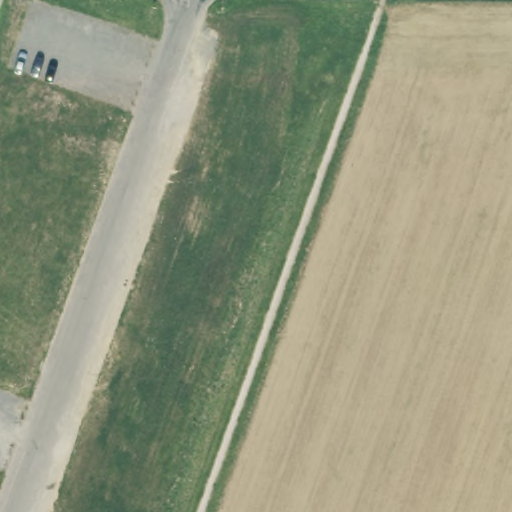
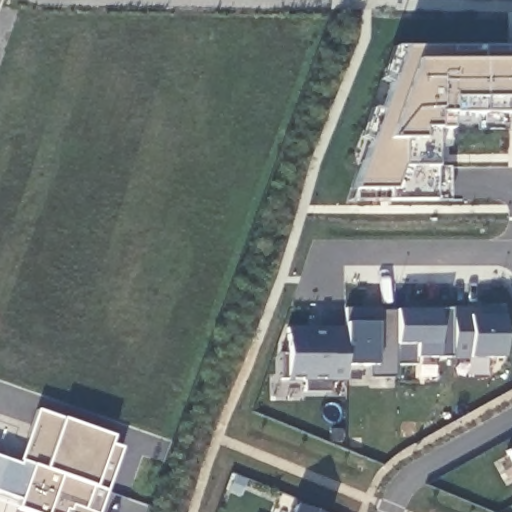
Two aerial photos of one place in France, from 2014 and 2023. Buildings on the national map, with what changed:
new [(450,114),(449,130),(435,129),(434,168),(435,199),(348,199),(351,191),(401,48),(512,48),(512,114),(450,114)]
new [(505,315),(502,360),(468,359),(452,357),(455,306),(504,307),(505,315)]
new [(381,312),(396,311),(397,379),(371,378),(372,367),(345,365),(345,332),(344,322),(347,323),(345,307),(379,307),(381,312)]
new [(280,352),(287,352),(287,327),(313,327),(313,332),(345,332),(345,379),(329,379),(329,391),(304,391),(304,379),(280,379),(280,352)]
new [(113,436),(110,444),(123,449),(99,512),(24,512),(16,509),(19,501),(0,494),(0,457),(18,463),(36,410),(61,419),(113,436)]
new [(512,447),(512,463),(506,451),(512,447)]
new [(295,503),(318,512),(292,512),(295,503)]

